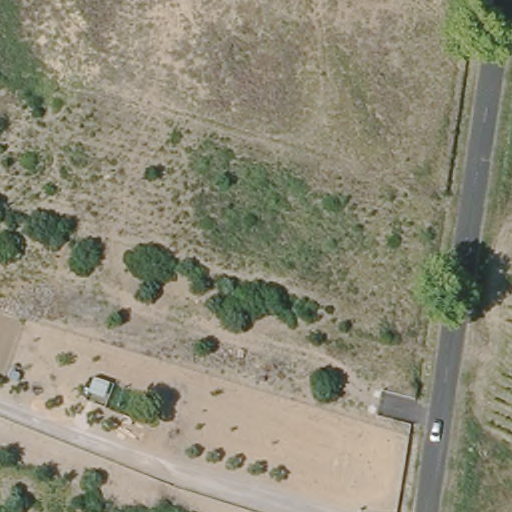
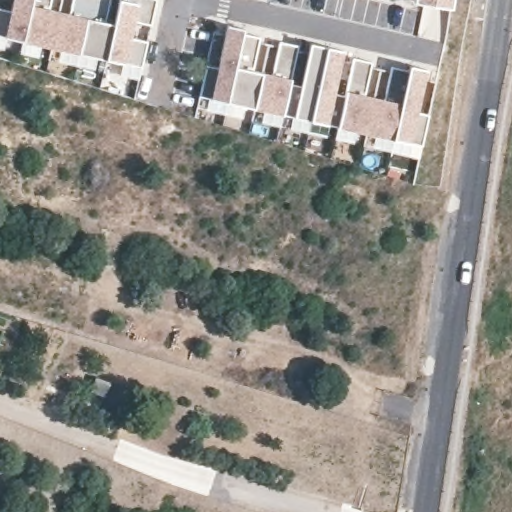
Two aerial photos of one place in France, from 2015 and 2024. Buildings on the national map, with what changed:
new [(136,18),(131,36),(148,41),(143,65),(127,60),(127,62),(107,57),(24,40),(24,44),(4,39),(5,34),(0,33),(0,0),(110,0),(106,21),(114,22),(119,0),(157,0),(152,25),(136,18)]
new [(411,3),(411,0),(452,0),(451,8),(411,3)]
new [(218,65),(227,26),(243,31),(261,37),(252,69),(272,75),(278,41),(299,45),(291,82),(302,85),(311,44),(344,52),(336,90),(347,92),(353,58),(370,63),(364,96),(386,99),(393,65),(409,66),(426,69),(417,110),(429,113),(422,145),(411,142),(212,98),(200,97),(207,64),(218,65)]

